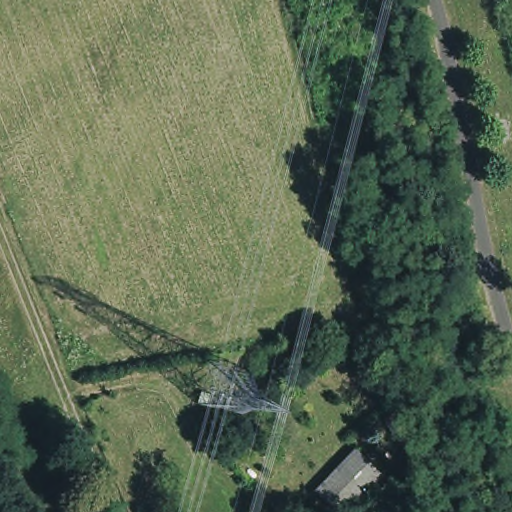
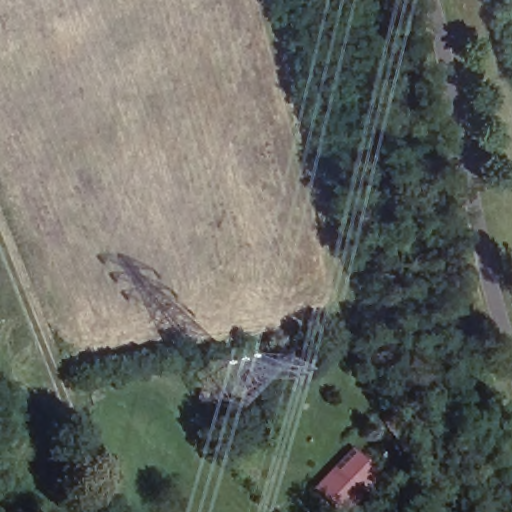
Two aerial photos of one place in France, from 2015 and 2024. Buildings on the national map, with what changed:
unchanged [(353,459),(375,487),(343,512),(338,512),(318,487),(353,459)]

